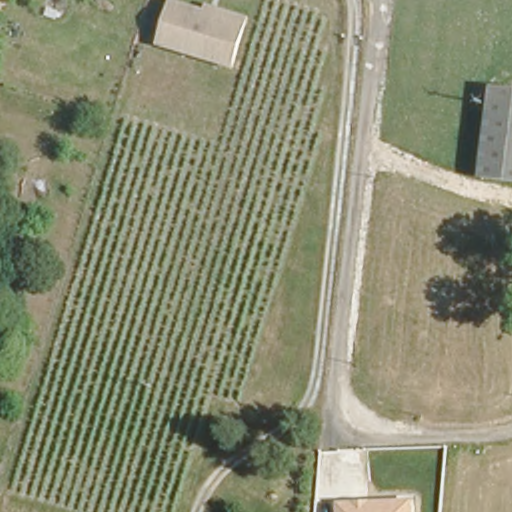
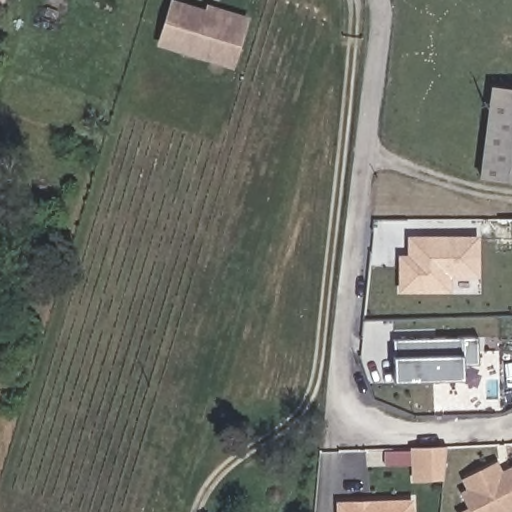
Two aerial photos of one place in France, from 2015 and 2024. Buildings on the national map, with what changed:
unchanged [(234,71),(157,46),(173,0),(174,0),(207,11),(210,5),(240,17),(242,13),(250,17),(234,71)]
unchanged [(478,174),(487,83),(512,85),(512,176),(478,174)]
new [(452,278),(452,294),(397,294),(398,255),(407,256),(407,236),(480,237),(481,278),(452,278)]
new [(477,337),(478,363),(464,363),(465,379),(396,382),(394,340),(477,337)]
new [(408,465),(384,466),(387,449),(444,447),(445,480),(412,481),(408,465)]
new [(460,492),(467,489),(462,479),(497,460),(502,470),(512,466),(512,512),(461,512),(467,509),(460,492)]
unchanged [(412,500),(413,512),(338,512),(337,502),(412,500)]

